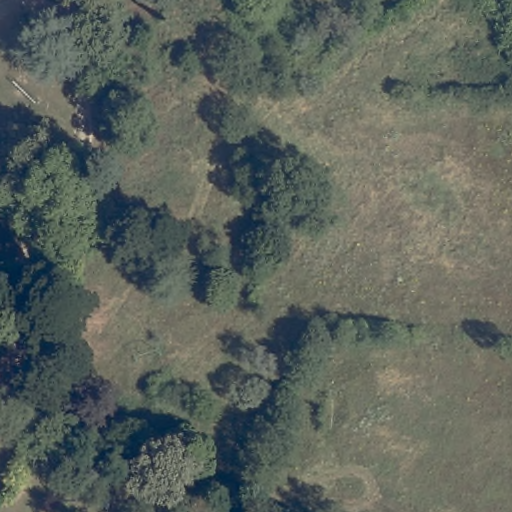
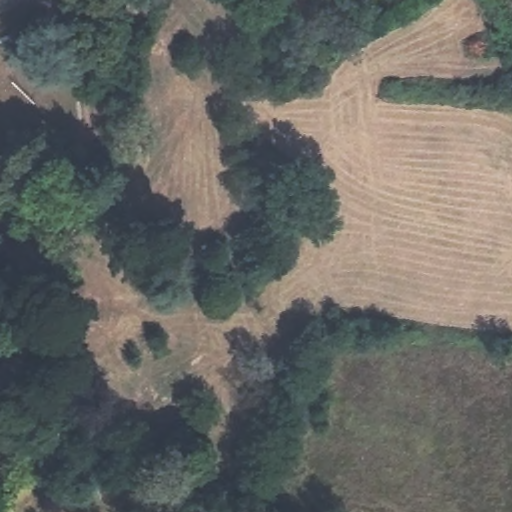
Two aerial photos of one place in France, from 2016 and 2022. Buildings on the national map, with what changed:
unchanged [(98,512),(90,512),(91,508),(98,512)]

